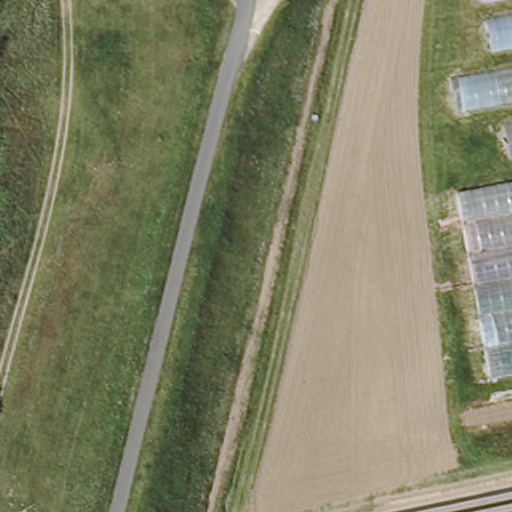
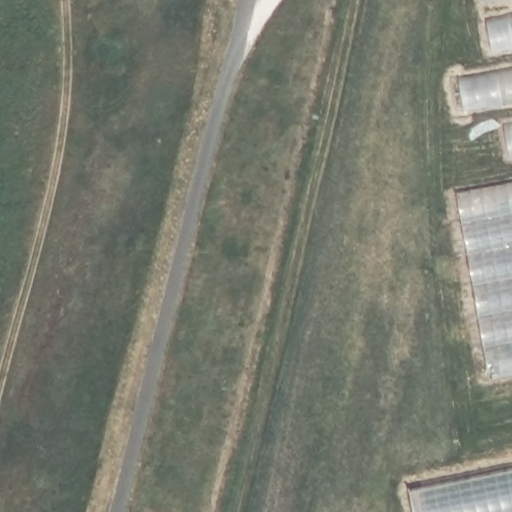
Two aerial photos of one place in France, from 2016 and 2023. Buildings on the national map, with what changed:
unchanged [(463,122),(455,79),(497,72),(485,0),(512,0),(512,112),(463,122)]
unchanged [(510,156),(502,124),(512,122),(512,156),(510,156)]
unchanged [(492,377),(457,191),(512,181),(512,373),(492,377)]
new [(410,490),(512,469),(512,512),(415,512),(410,490)]

